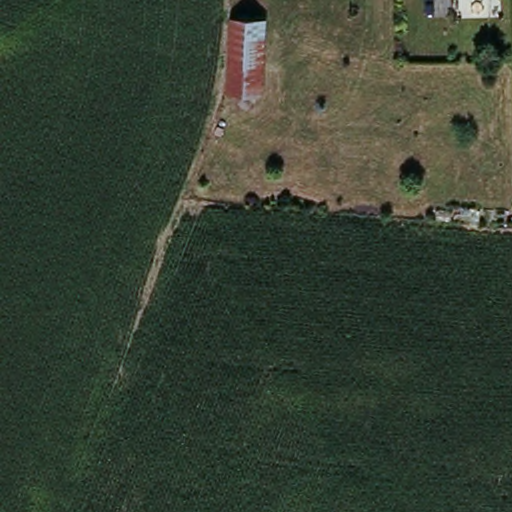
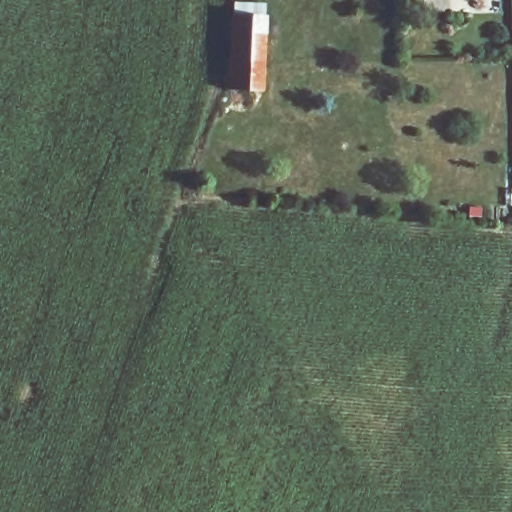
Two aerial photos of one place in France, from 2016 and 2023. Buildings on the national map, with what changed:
unchanged [(231,9),(262,11),(255,102),(224,102),(231,9)]

